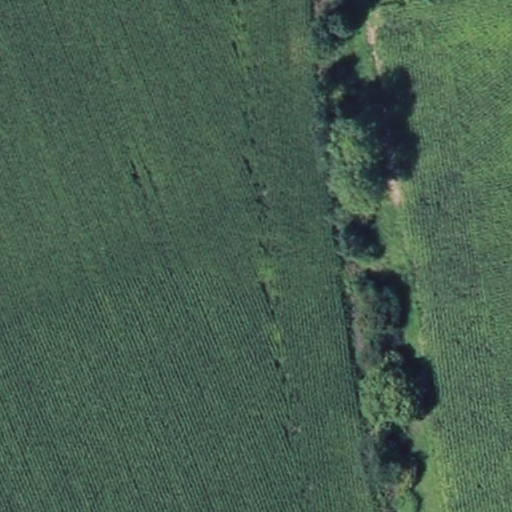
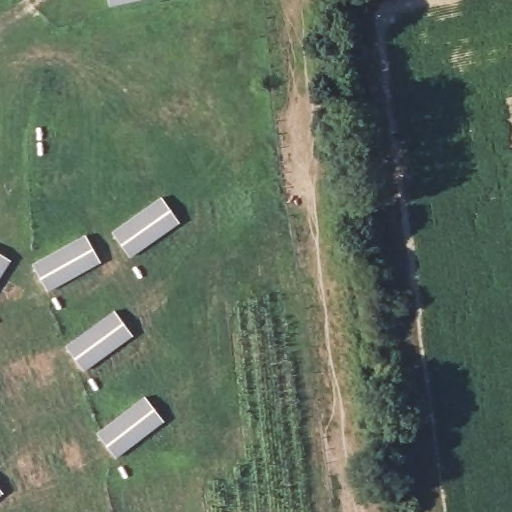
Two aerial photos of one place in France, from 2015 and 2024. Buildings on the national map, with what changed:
new [(126,262),(114,232),(170,209),(182,238),(126,262)]
new [(86,237),(101,265),(47,293),(32,265),(86,237)]
new [(0,308),(0,274),(10,269),(23,299),(0,308)]
new [(78,373),(66,344),(122,320),(134,349),(78,373)]
new [(153,407),(166,438),(111,462),(97,431),(153,407)]
new [(4,499),(0,500),(0,490),(4,499)]

